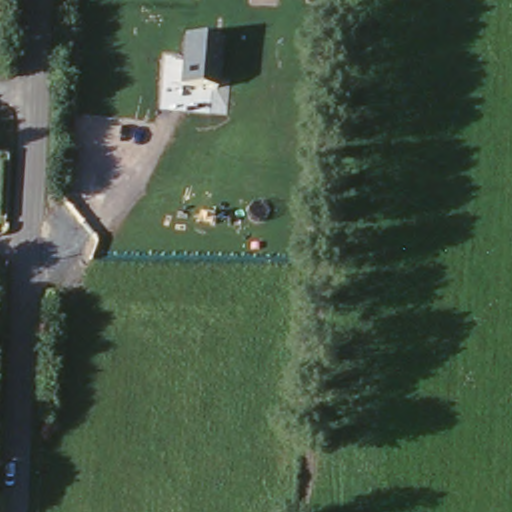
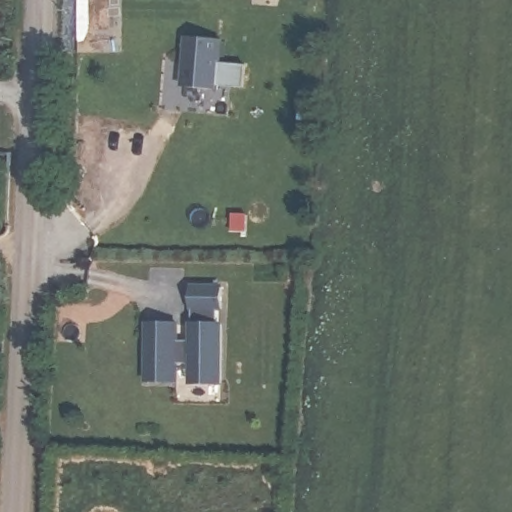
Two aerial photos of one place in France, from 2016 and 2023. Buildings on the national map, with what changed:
unchanged [(224,39),(220,92),(180,89),(183,36),(224,39)]
new [(175,322),(175,340),(190,341),(189,287),(222,286),(222,304),(216,305),(217,322),(222,322),(221,383),(189,383),(189,362),(176,363),(175,383),(144,382),(145,322),(175,322)]

